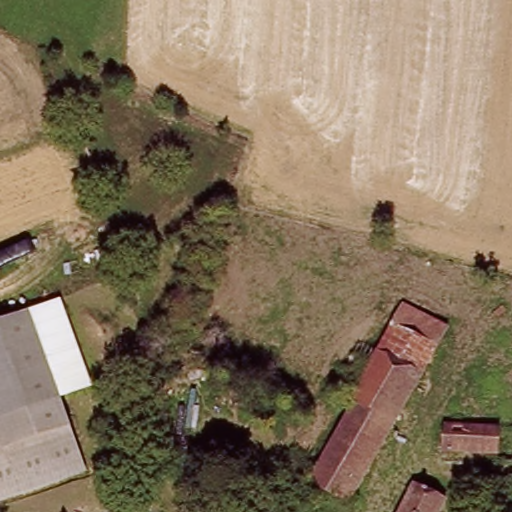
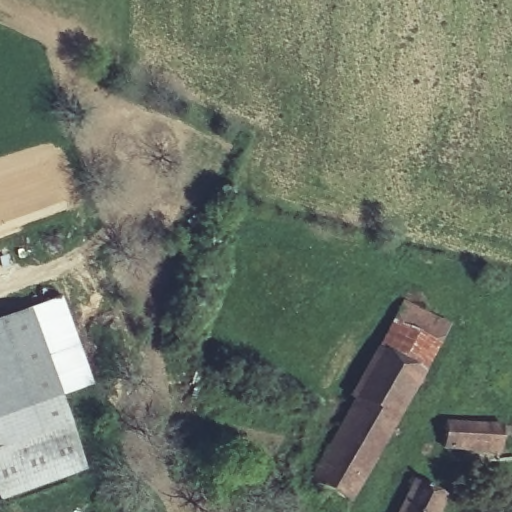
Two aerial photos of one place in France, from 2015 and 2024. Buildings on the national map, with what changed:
unchanged [(62,297),(96,382),(58,396),(23,311),(62,297)]
unchanged [(376,350),(401,303),(446,327),(421,373),(376,350)]
unchanged [(0,417),(0,319),(23,311),(58,396),(0,417)]
unchanged [(353,498),(313,477),(344,421),(356,401),(349,397),(376,350),(421,373),(353,498)]
unchanged [(58,396),(72,435),(0,464),(0,417),(58,396)]
unchanged [(451,448),(452,423),(507,428),(504,453),(451,448)]
unchanged [(0,495),(0,464),(72,435),(84,466),(1,500),(0,495)]
unchanged [(449,495),(440,512),(400,512),(418,478),(449,495)]

